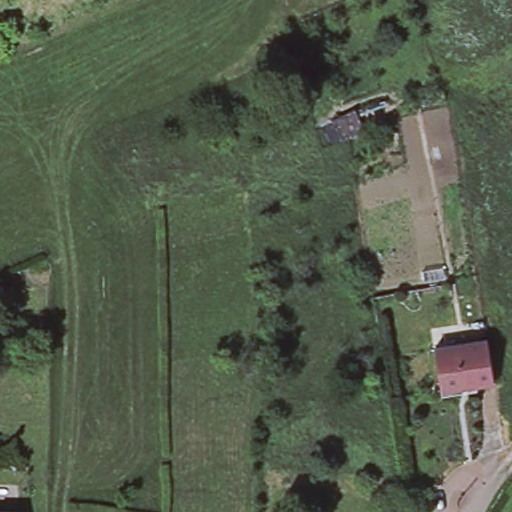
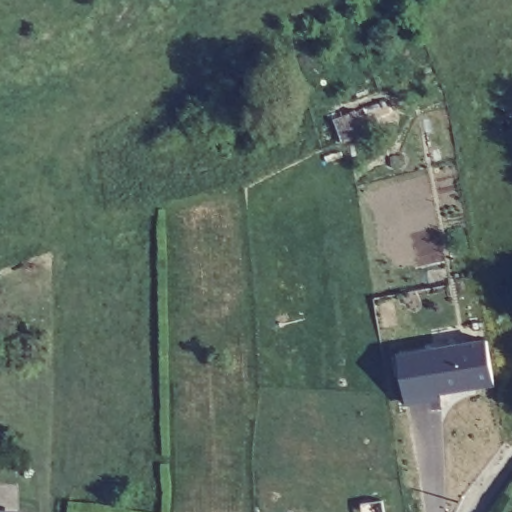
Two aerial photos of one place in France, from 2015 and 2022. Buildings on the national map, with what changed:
unchanged [(433,347),(486,339),(493,382),(439,391),(434,355),(433,347)]
new [(441,406),(403,408),(394,352),(433,347),(434,355),(439,391),(441,406)]

